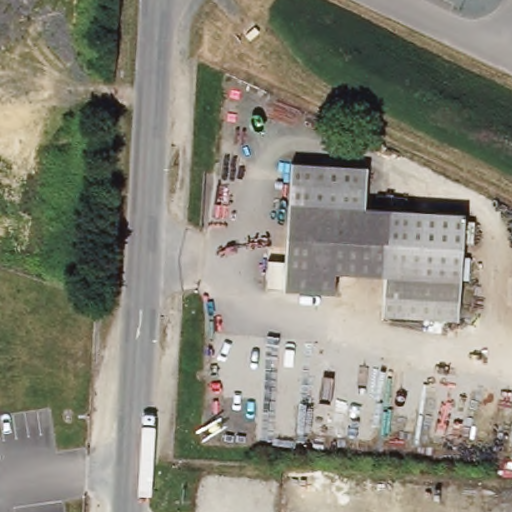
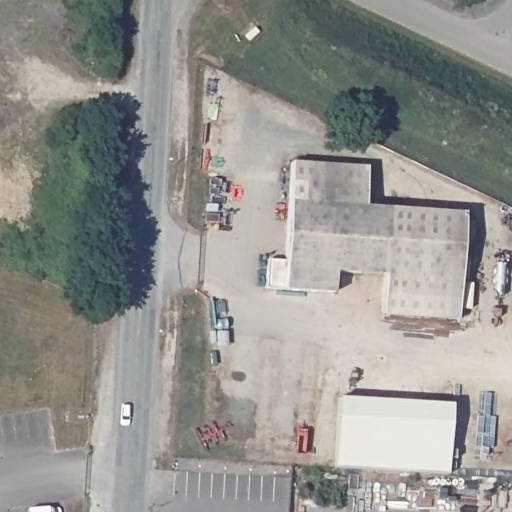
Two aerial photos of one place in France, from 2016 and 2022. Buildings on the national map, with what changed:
unchanged [(464,282),(340,274),(338,294),(270,290),(272,262),(290,263),(296,164),(372,169),(369,209),(469,215),(464,282)]
unchanged [(462,282),(459,320),(384,316),(384,277),(462,282)]
new [(338,417),(451,424),(448,474),(335,467),(338,417)]

